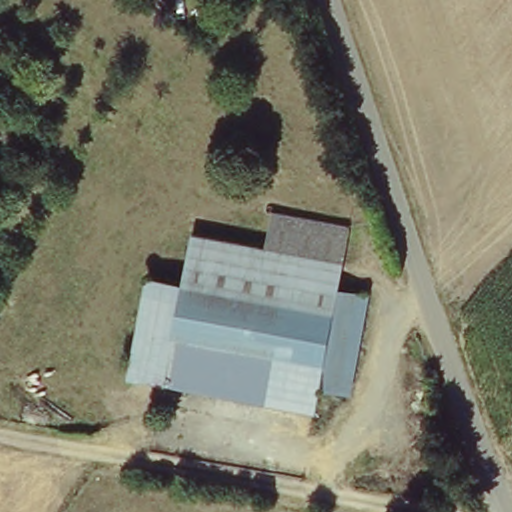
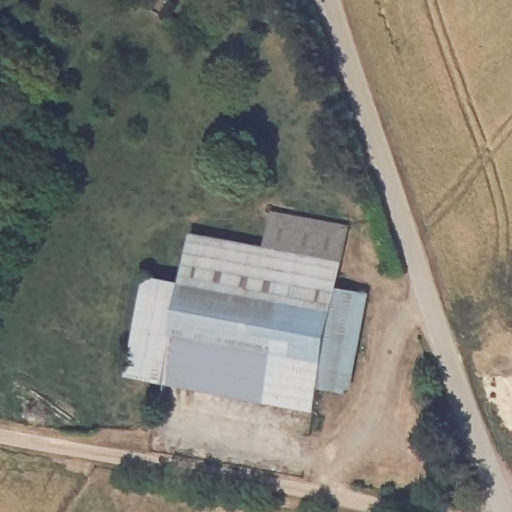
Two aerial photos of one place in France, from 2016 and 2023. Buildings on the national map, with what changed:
unchanged [(189,234),(262,248),(269,212),(343,227),(332,288),(314,387),(310,411),(161,383),(180,283),(189,234)]
unchanged [(161,383),(125,377),(142,276),(180,283),(161,383)]
unchanged [(332,288),(363,294),(346,393),(314,387),(332,288)]

